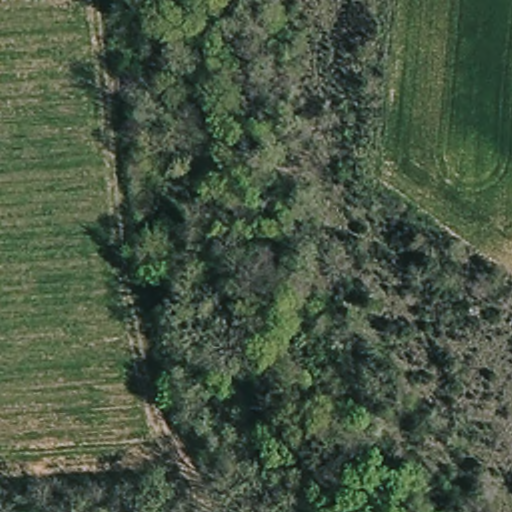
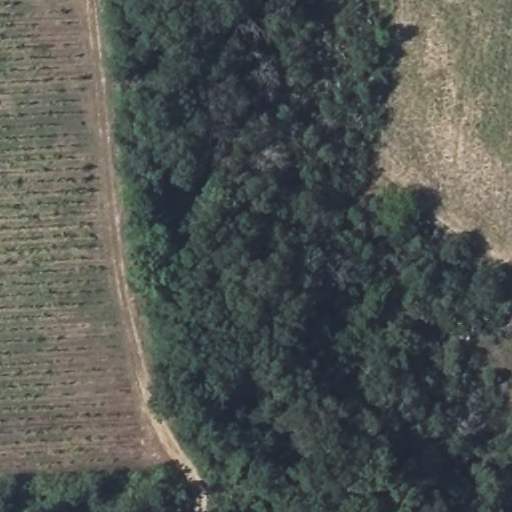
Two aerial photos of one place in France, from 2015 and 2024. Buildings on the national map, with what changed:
unchanged [(158,221),(158,235),(142,235),(142,220),(158,221)]

